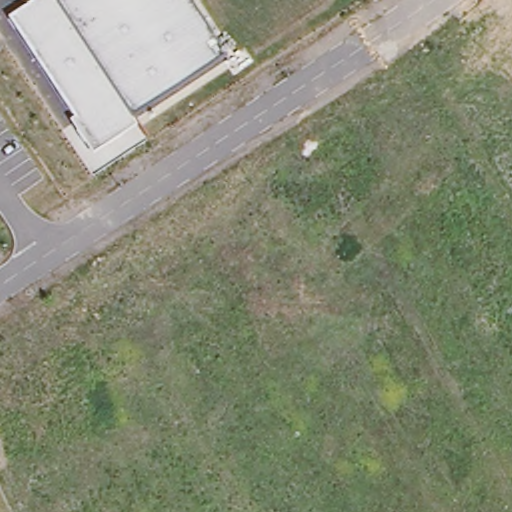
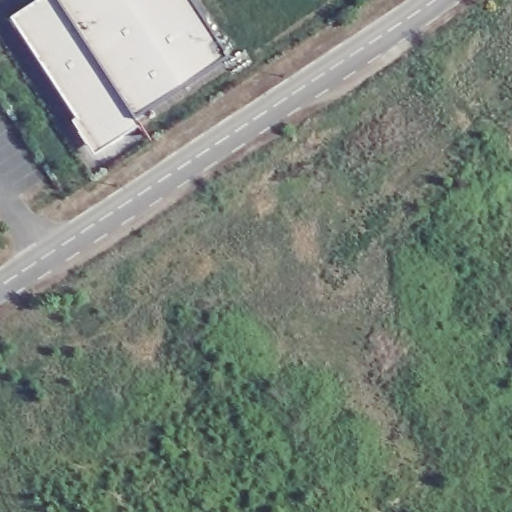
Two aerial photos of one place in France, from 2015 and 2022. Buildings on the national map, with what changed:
unchanged [(75,120),(9,20),(39,0),(187,0),(224,57),(132,118),(137,127),(92,156),(71,123),(75,120)]

